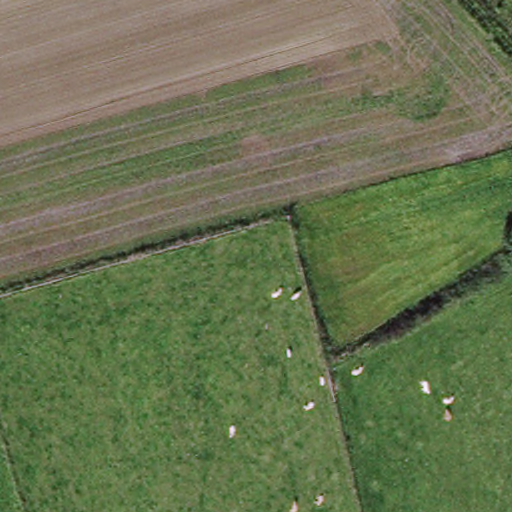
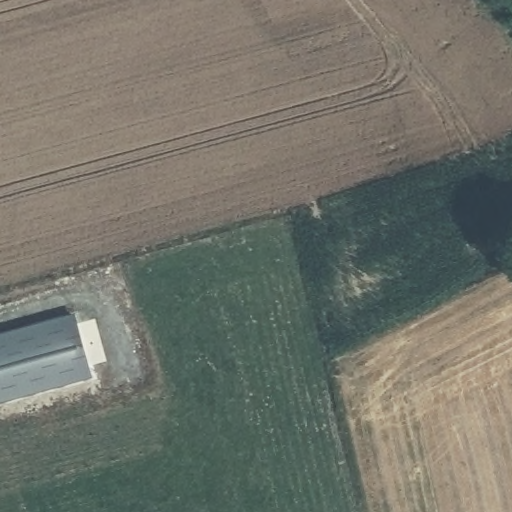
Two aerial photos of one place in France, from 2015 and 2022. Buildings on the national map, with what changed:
new [(75,311),(91,370),(0,395),(0,331),(75,311)]

